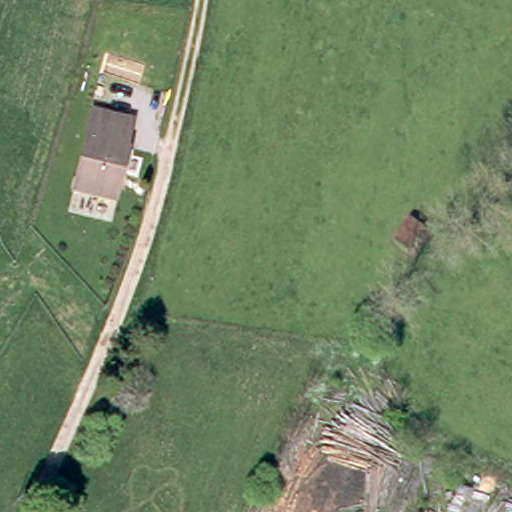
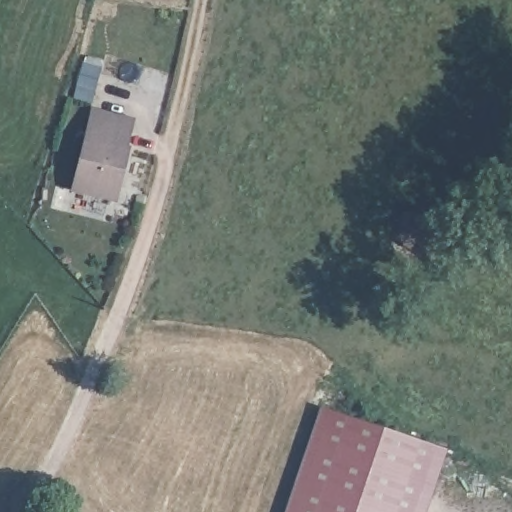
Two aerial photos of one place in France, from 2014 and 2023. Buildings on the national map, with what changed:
unchanged [(111,195),(70,185),(90,110),(107,114),(131,119),(129,126),(125,143),(128,144),(120,174),(115,196),(111,195)]
new [(321,406),(447,452),(427,512),(285,512),(321,406)]

